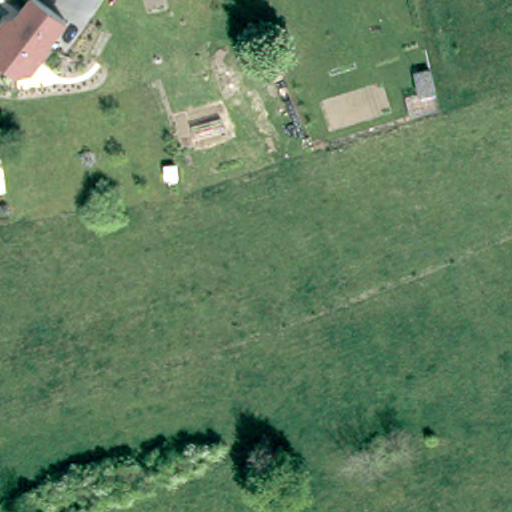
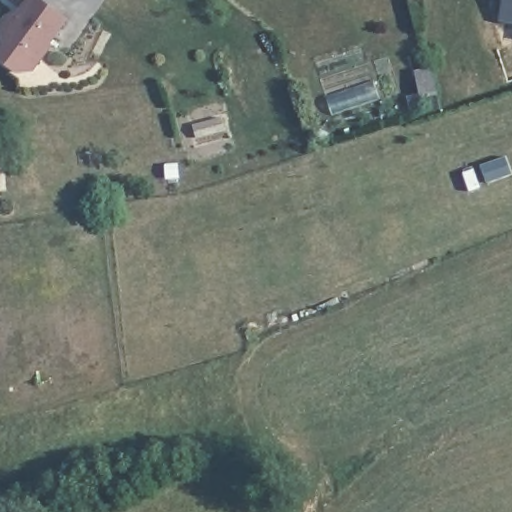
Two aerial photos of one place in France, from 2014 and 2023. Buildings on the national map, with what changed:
unchanged [(0,35),(0,21),(3,17),(10,16),(12,18),(25,0),(34,0),(61,21),(43,45),(45,46),(25,71),(12,73),(0,63),(0,41),(3,38),(0,35)]
new [(499,22),(502,0),(512,0),(512,24),(499,22)]

